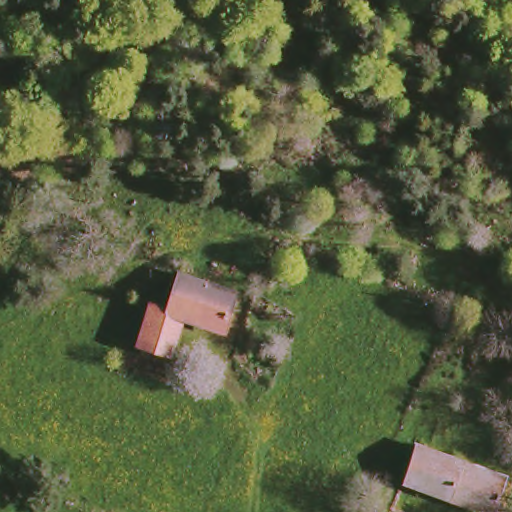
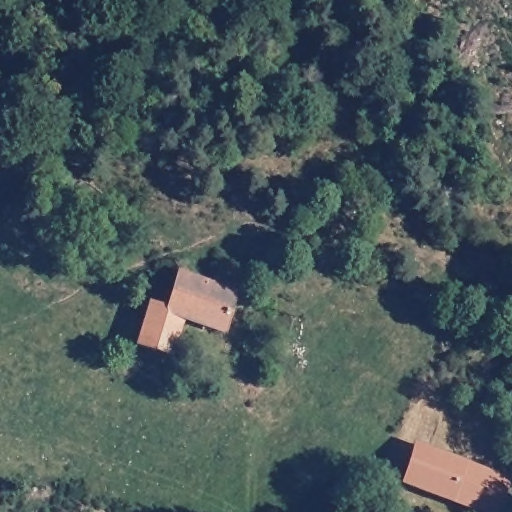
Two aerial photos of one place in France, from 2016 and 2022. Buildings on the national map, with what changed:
unchanged [(144,299),(162,304),(173,271),(237,292),(222,337),(180,323),(169,361),(132,347),(144,299)]
unchanged [(407,444),(504,474),(491,512),(469,512),(392,484),(407,444)]

